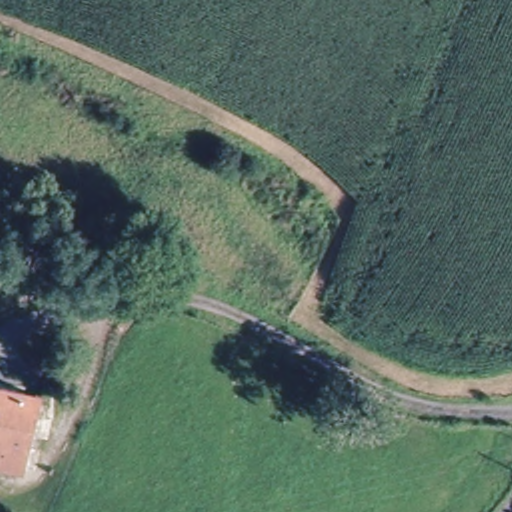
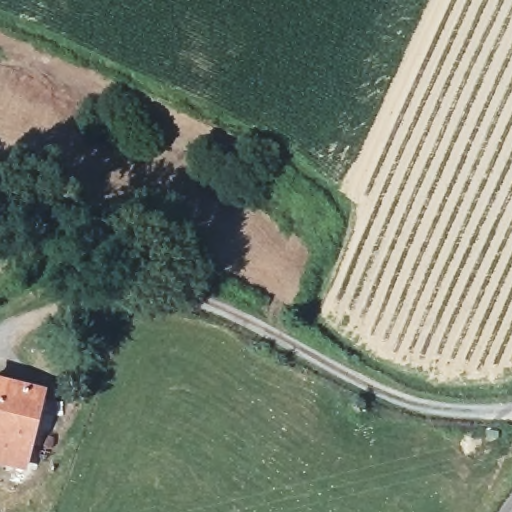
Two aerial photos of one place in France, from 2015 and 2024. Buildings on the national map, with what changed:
unchanged [(0,455),(0,381),(39,386),(29,459),(0,455)]

